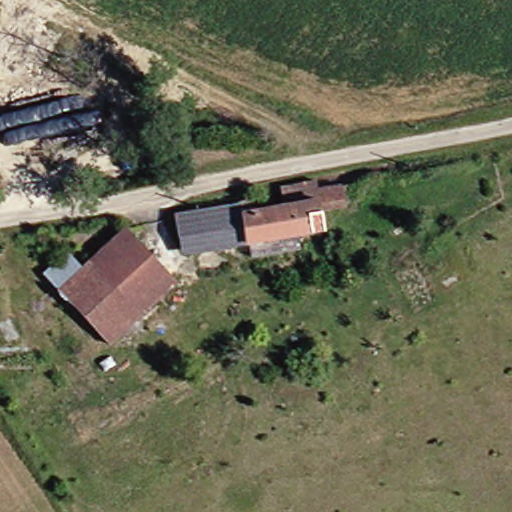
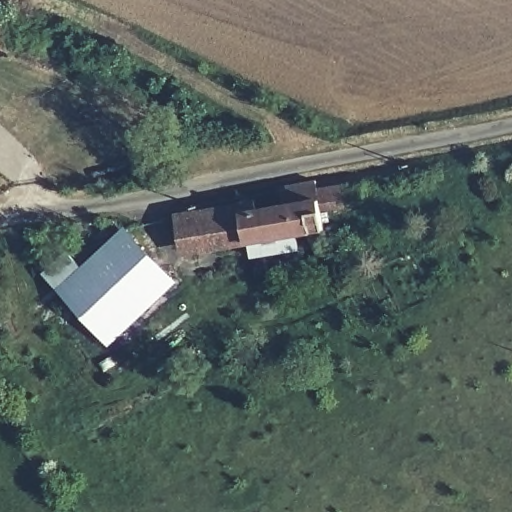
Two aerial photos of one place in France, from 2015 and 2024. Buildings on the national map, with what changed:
unchanged [(249,202),(252,212),(281,205),(278,186),(311,180),(312,189),(340,185),(342,209),(318,212),(321,233),(288,237),(290,251),(246,258),(244,245),(195,254),(188,217),(249,202)]
unchanged [(90,260),(123,227),(174,282),(147,309),(140,314),(90,260)]
unchanged [(110,344),(57,287),(43,273),(66,249),(82,268),(90,260),(140,314),(110,344)]

